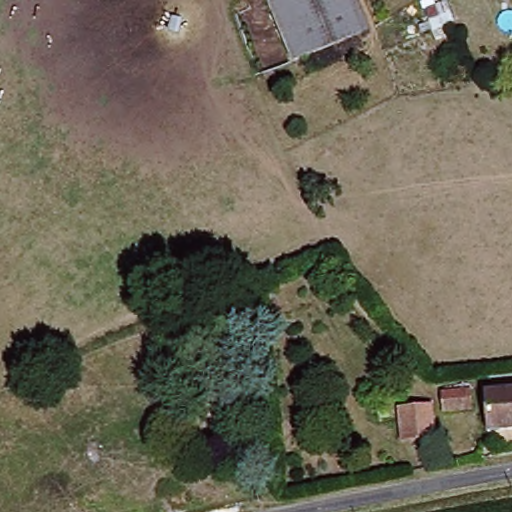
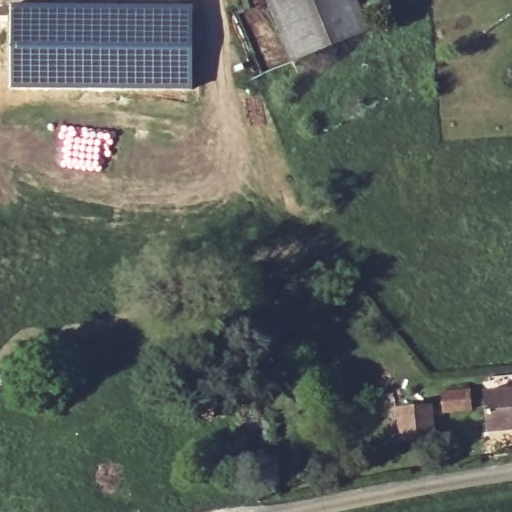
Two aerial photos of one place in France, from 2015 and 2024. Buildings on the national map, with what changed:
unchanged [(355,0),(369,29),(297,65),(265,0),(355,0)]
new [(10,4),(194,4),(193,90),(90,90),(10,90),(10,4)]
unchanged [(445,393),(471,391),(472,410),(446,411),(445,393)]
unchanged [(485,435),(482,395),(512,392),(512,432),(485,435)]
unchanged [(431,436),(402,438),(400,408),(429,406),(431,436)]

